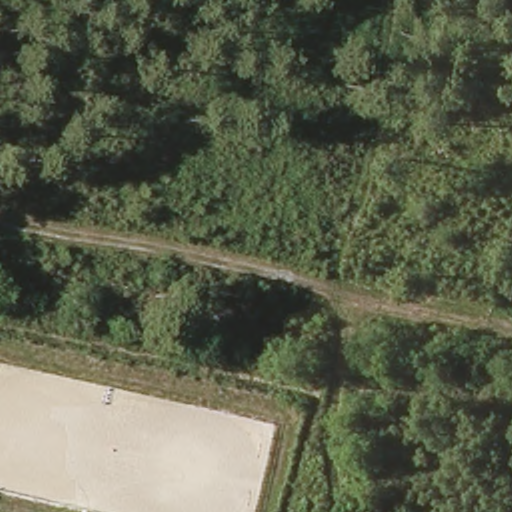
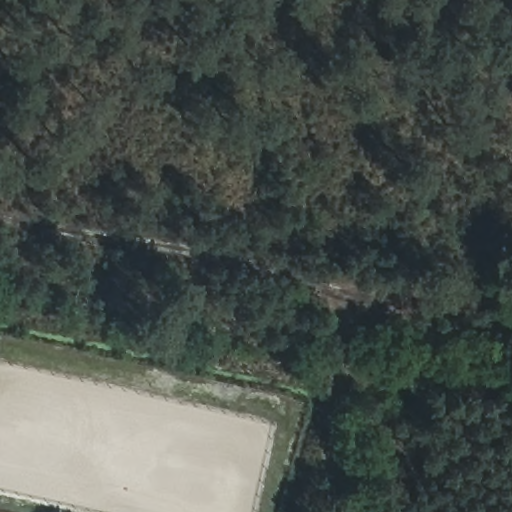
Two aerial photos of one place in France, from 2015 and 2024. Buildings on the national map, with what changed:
[]

